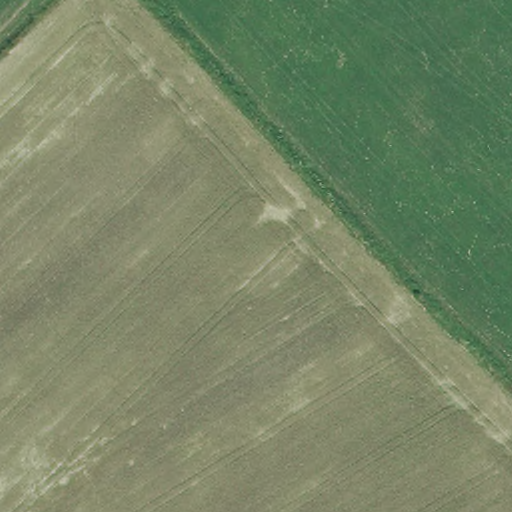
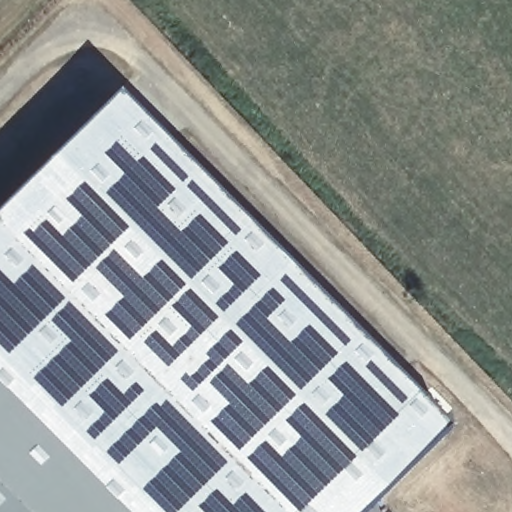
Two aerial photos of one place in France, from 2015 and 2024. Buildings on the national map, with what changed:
new [(340,512),(0,512),(0,170),(90,80),(435,420),(340,512)]

